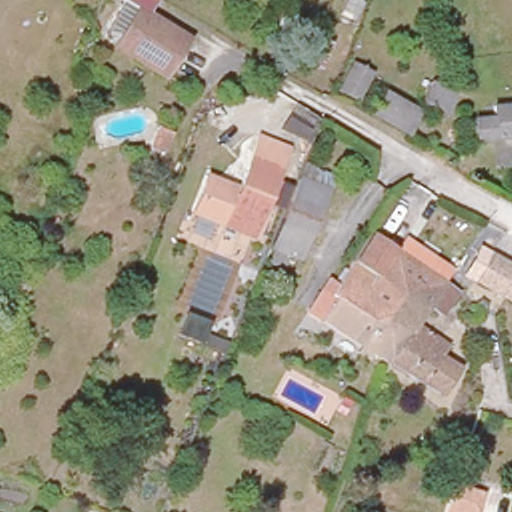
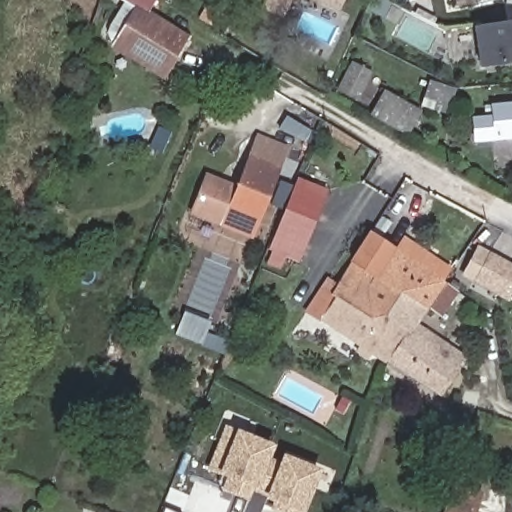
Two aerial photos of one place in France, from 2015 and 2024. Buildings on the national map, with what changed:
unchanged [(114,50),(121,38),(139,8),(124,0),(156,0),(148,13),(187,37),(169,67),(162,80),(114,50)]
new [(285,15),(263,5),(266,0),(293,0),(285,15)]
new [(339,12),(313,0),(345,0),(339,12)]
demolished [(339,0),(361,0),(347,27),(331,19),(339,0)]
new [(477,5),(476,0),(502,0),(477,5)]
new [(480,68),(473,26),(512,21),(512,65),(480,68)]
demolished [(321,77),(300,70),(311,38),(332,45),(321,77)]
unchanged [(357,105),(336,94),(350,68),(372,74),(357,105)]
unchanged [(442,113),(418,103),(429,77),(455,89),(442,113)]
unchanged [(387,127),(370,117),(385,91),(423,113),(408,140),(387,127)]
unchanged [(292,99),(313,112),(312,115),(311,119),(302,140),(280,127),(288,106),(292,99)]
unchanged [(488,116),(487,103),(512,101),(512,135),(471,139),(468,118),(488,116)]
unchanged [(255,136),(284,148),(250,236),(245,234),(221,224),(190,213),(203,177),(234,189),(240,175),(247,158),(249,152),(255,136)]
unchanged [(270,256),(280,231),(303,170),(331,181),(307,242),(297,267),(270,256)]
unchanged [(270,205),(278,181),(291,186),(287,196),(281,209),(270,205)]
unchanged [(464,369),(462,372),(444,398),(393,364),(369,347),(344,330),(348,323),(367,294),(380,274),(359,262),(358,261),(356,260),(357,258),(373,234),(377,236),(396,247),(402,237),(456,270),(449,280),(448,282),(447,283),(463,293),(447,317),(431,307),(421,322),(419,324),(452,347),(446,356),(464,369)]
unchanged [(490,252),(512,267),(512,292),(507,298),(474,276),(490,252)]
unchanged [(367,294),(348,323),(344,330),(343,330),(326,318),(327,316),(313,306),(330,280),(342,287),(358,261),(359,262),(380,274),(367,294)]
unchanged [(175,331),(177,325),(183,310),(207,320),(202,334),(199,340),(175,331)]
new [(278,512),(267,507),(270,498),(251,492),(251,499),(220,489),(224,473),(206,468),(225,423),(272,442),(266,456),(276,460),(280,451),(318,466),(301,512),(278,512)]
unchanged [(478,512),(447,512),(453,491),(482,501),(478,512)]

